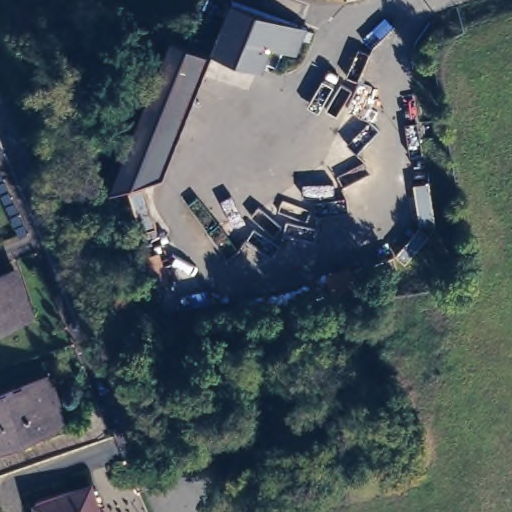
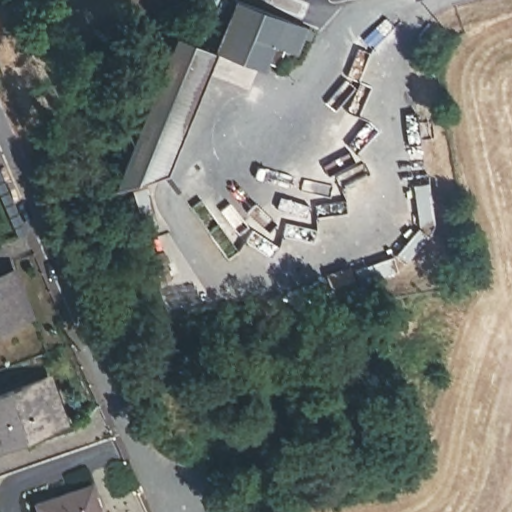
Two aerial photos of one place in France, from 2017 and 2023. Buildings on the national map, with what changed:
unchanged [(203,33),(216,0),(223,0),(297,29),(287,56),(277,51),(267,80),(200,51),(157,177),(90,189),(149,38),(157,18),(203,33)]
unchanged [(14,312),(0,317),(0,273),(14,312)]
unchanged [(44,426),(0,441),(0,395),(30,384),(44,426)]
unchanged [(86,492),(93,512),(33,512),(32,509),(86,492)]

